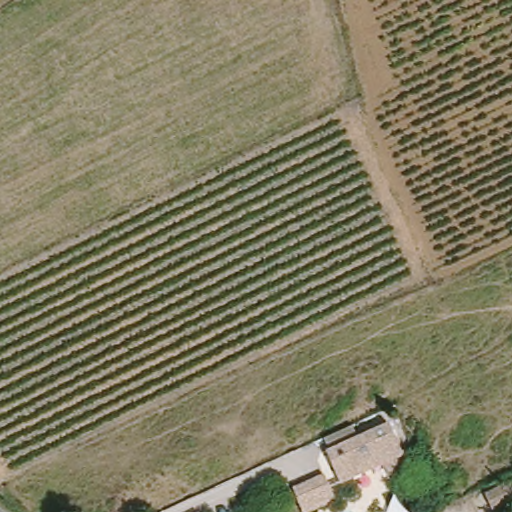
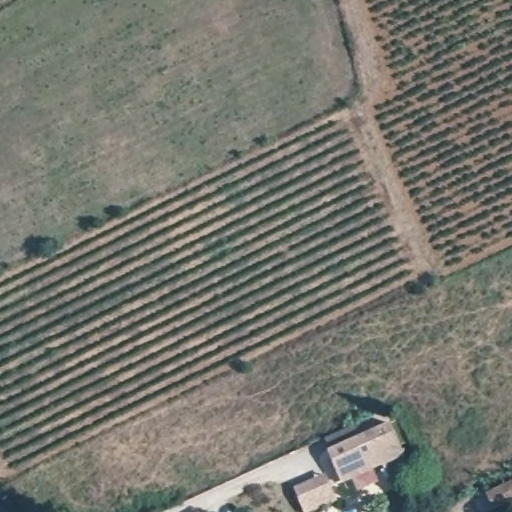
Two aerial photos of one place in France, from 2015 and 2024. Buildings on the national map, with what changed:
unchanged [(407,459),(344,488),(331,456),(392,427),(407,459)]
unchanged [(287,490),(323,477),(330,500),(305,512),(298,512),(287,490)]
unchanged [(497,490),(512,483),(512,505),(506,508),(497,490)]
unchanged [(194,510),(195,512),(189,512),(194,510)]

